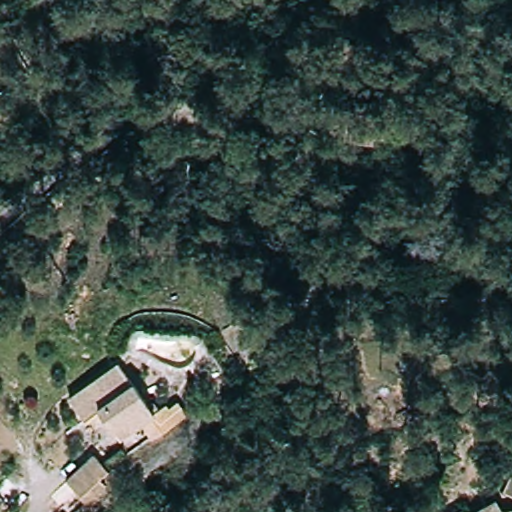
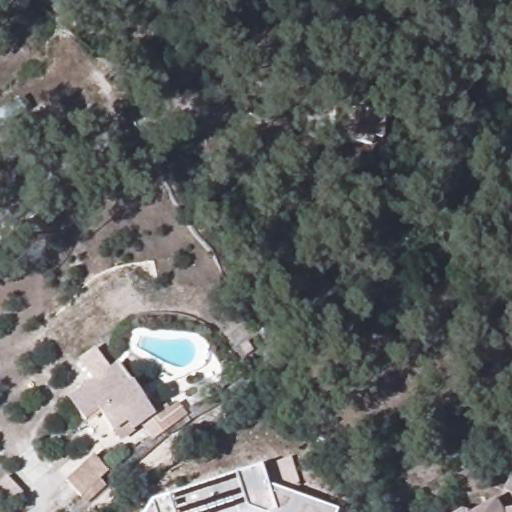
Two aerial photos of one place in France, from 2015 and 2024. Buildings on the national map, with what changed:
unchanged [(359,116),(376,116),(375,139),(358,139),(359,116)]
unchanged [(121,365),(151,417),(164,410),(167,414),(179,408),(186,420),(158,436),(151,424),(118,443),(100,412),(86,420),(71,395),(121,365)]
unchanged [(96,455),(115,481),(86,503),(67,478),(96,455)]
new [(154,501),(264,465),(271,487),(339,510),(338,512),(147,512),(154,501)]
unchanged [(464,480),(462,499),(442,499),(443,479),(464,480)]
unchanged [(507,497),(512,506),(512,512),(479,512),(507,497)]
unchanged [(465,509),(468,512),(460,512),(465,509)]

